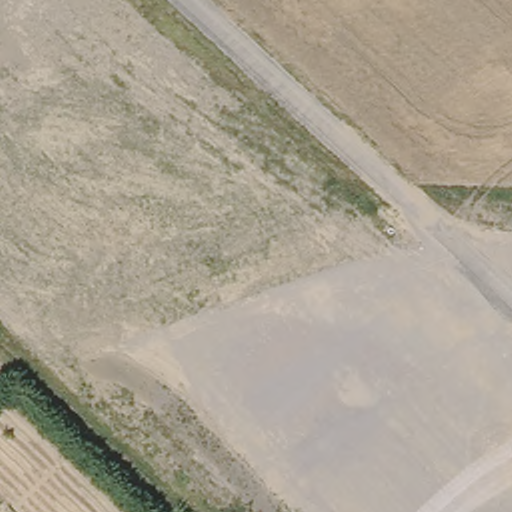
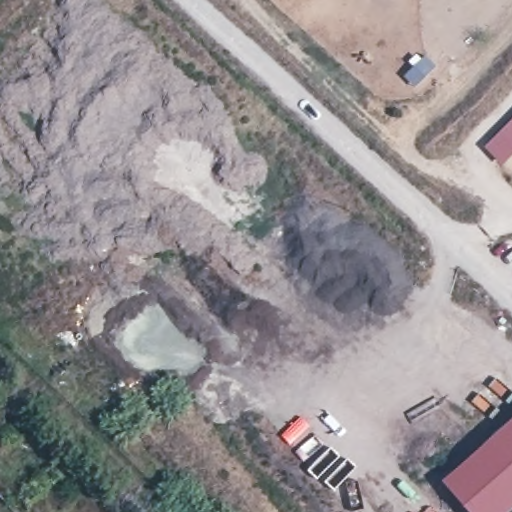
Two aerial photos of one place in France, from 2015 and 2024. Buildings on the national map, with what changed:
new [(424,56),(435,67),(414,87),(404,76),(424,56)]
new [(485,148),(512,121),(512,157),(505,165),(485,148)]
new [(444,482),(512,422),(512,510),(510,512),(471,512),(444,482)]

